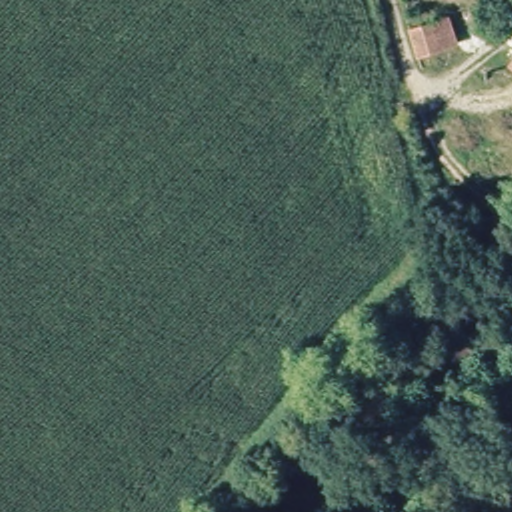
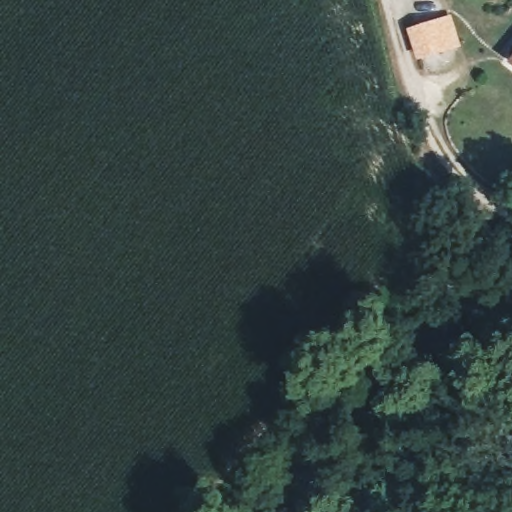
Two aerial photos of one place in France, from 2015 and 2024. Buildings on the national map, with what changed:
unchanged [(452,49),(445,51),(435,52),(424,53),(411,55),(408,28),(455,21),(455,26),(456,32),(458,44),(459,48),(452,49)]

